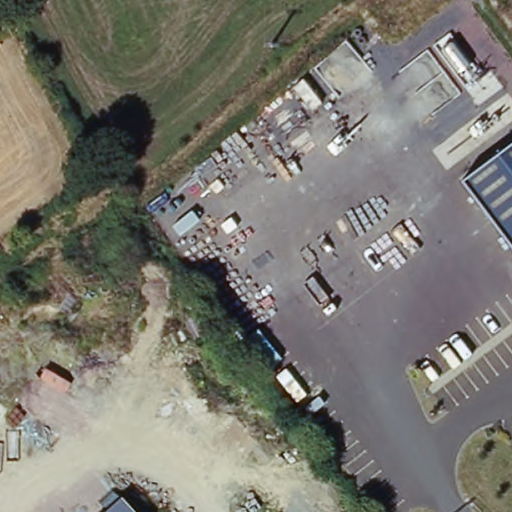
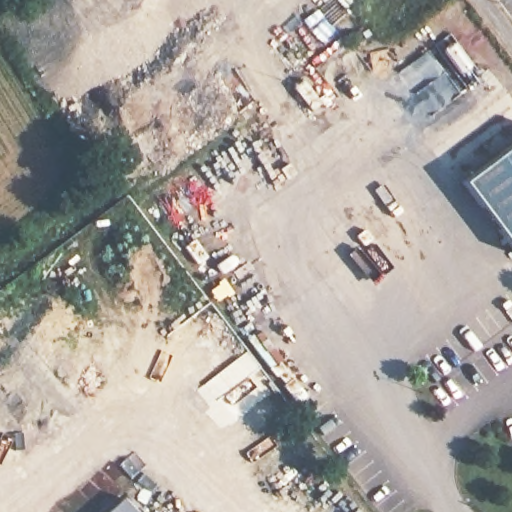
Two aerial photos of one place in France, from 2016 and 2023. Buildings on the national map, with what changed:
unchanged [(512,144),(512,245),(463,181),(512,144)]
unchanged [(130,512),(109,512),(120,502),(130,512)]

